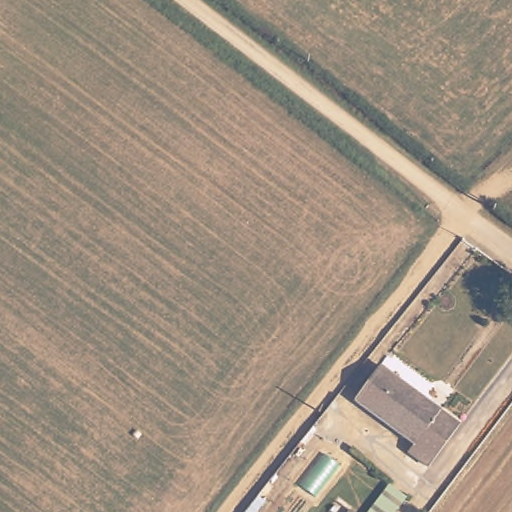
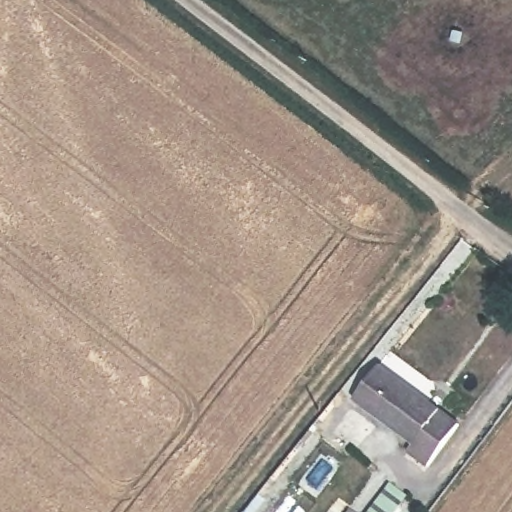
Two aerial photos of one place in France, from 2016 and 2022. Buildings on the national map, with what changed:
unchanged [(427,467),(407,452),(413,445),(368,411),(354,400),(379,366),(395,377),(459,425),(427,467)]
unchanged [(263,502),(255,512),(244,512),(257,496),(263,502)]
unchanged [(349,512),(347,512),(348,511),(349,512)]

